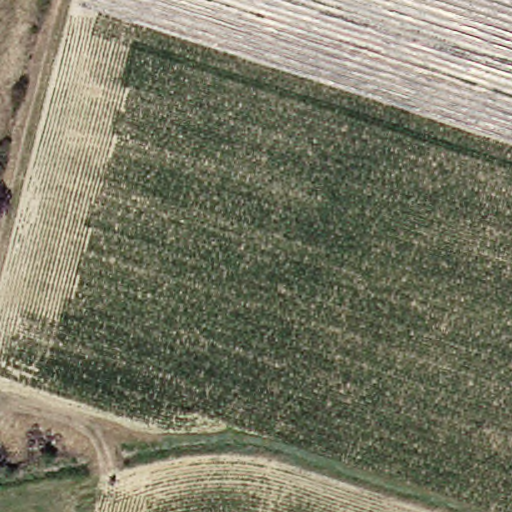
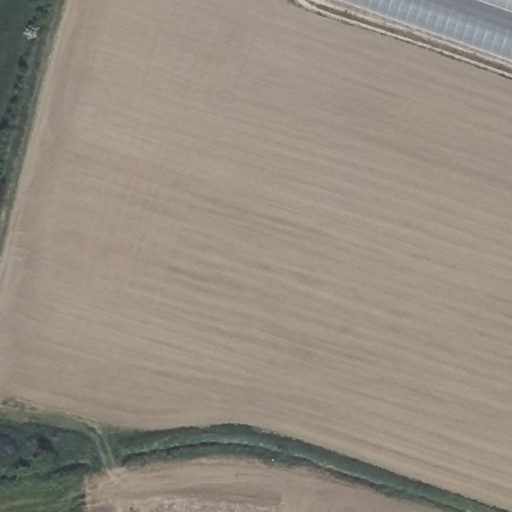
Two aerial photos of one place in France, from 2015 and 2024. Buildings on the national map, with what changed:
new [(347,0),(512,0),(512,58),(347,0)]

